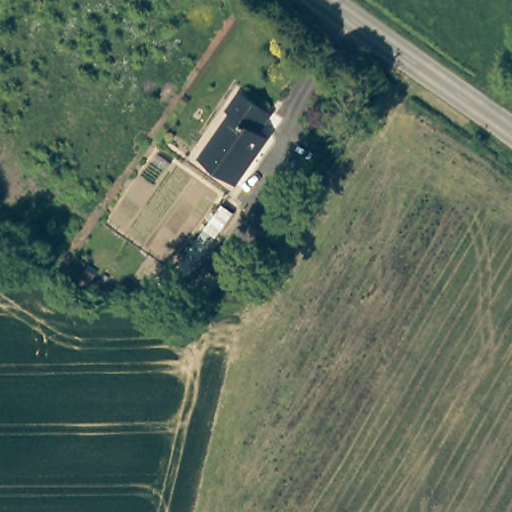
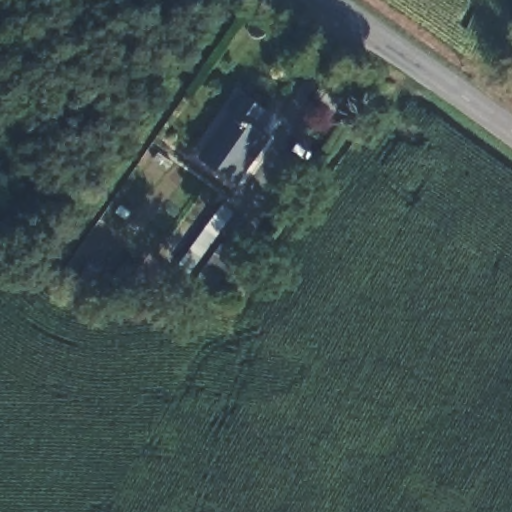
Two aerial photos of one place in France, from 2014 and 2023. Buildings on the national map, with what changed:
unchanged [(231,109),(242,93),(275,115),(265,130),(272,135),(240,182),(205,159),(236,112),(231,109)]
unchanged [(215,243),(242,261),(221,291),(195,274),(215,243)]

